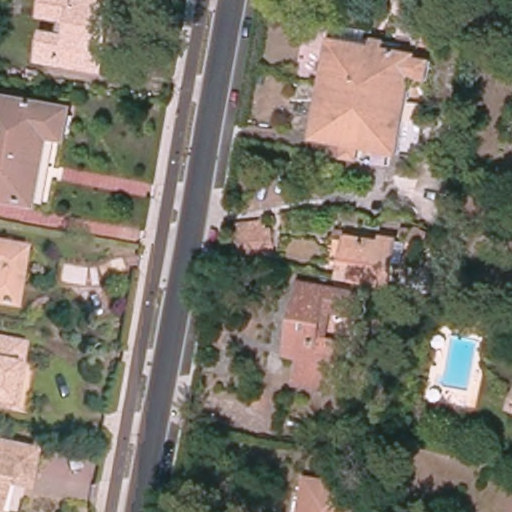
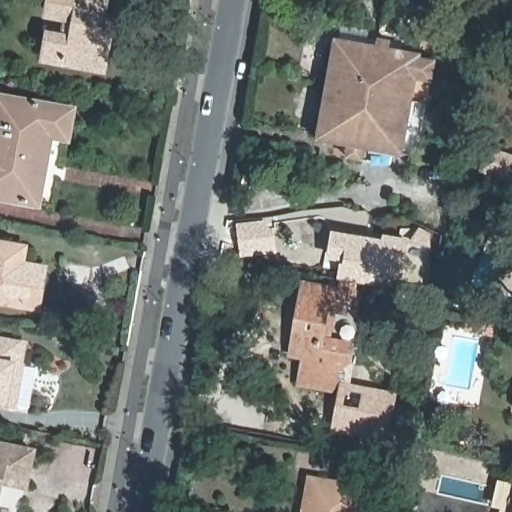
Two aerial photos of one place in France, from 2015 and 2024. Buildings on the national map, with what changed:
unchanged [(108,19),(105,37),(100,67),(40,59),(43,37),(65,41),(68,24),(47,20),(50,0),(102,0),(98,17),(108,19)]
unchanged [(341,152),(343,140),(319,136),(335,36),(376,42),(377,34),(392,37),(391,45),(420,50),(418,56),(435,58),(432,77),(416,75),(403,151),(366,144),(365,157),(341,152)]
unchanged [(4,87),(3,95),(0,115),(0,86),(4,87)]
unchanged [(3,95),(75,107),(80,107),(76,132),(70,131),(53,128),(41,196),(0,188),(0,115),(3,95)]
unchanged [(272,224),(273,232),(279,231),(283,250),(252,255),(247,228),(272,224)]
unchanged [(51,266),(45,300),(12,295),(11,297),(2,296),(2,292),(0,292),(0,239),(26,244),(23,262),(51,266)]
unchanged [(388,247),(389,241),(403,243),(394,288),(345,280),(347,270),(358,272),(360,264),(353,263),(356,241),(388,247)]
unchanged [(263,272),(261,288),(231,283),(233,267),(263,272)]
unchanged [(415,291),(417,279),(443,283),(441,295),(415,291)]
unchanged [(351,367),(349,366),(344,392),(309,386),(313,360),(301,358),(312,292),(363,301),(360,317),(340,314),(333,347),(354,352),(351,367)]
unchanged [(482,337),(471,334),(475,318),(485,321),(503,325),(499,341),(482,337)]
unchanged [(19,341),(16,362),(19,362),(12,400),(0,398),(0,337),(19,341)]
new [(396,393),(387,440),(330,428),(337,391),(344,392),(346,382),(396,393)]
unchanged [(18,512),(12,512),(0,510),(0,442),(30,447),(26,468),(23,482),(18,512)]
unchanged [(354,512),(302,512),(308,479),(339,484),(358,487),(354,512)]

